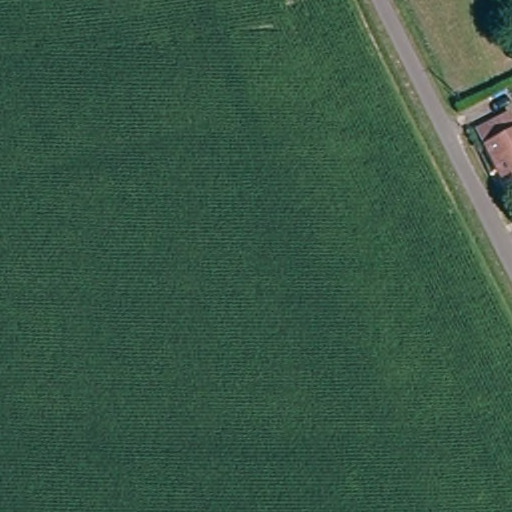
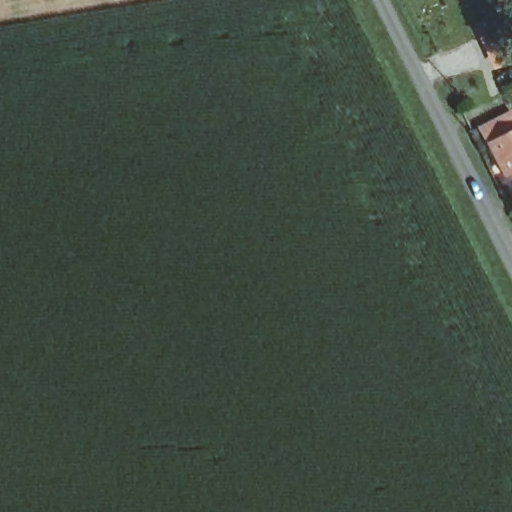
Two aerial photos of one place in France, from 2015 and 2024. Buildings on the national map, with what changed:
unchanged [(500,117),(505,114),(512,129),(512,172),(500,178),(485,147),(487,146),(477,128),(500,117)]

